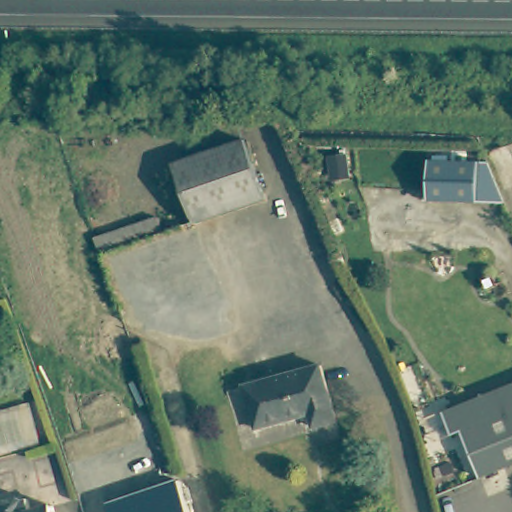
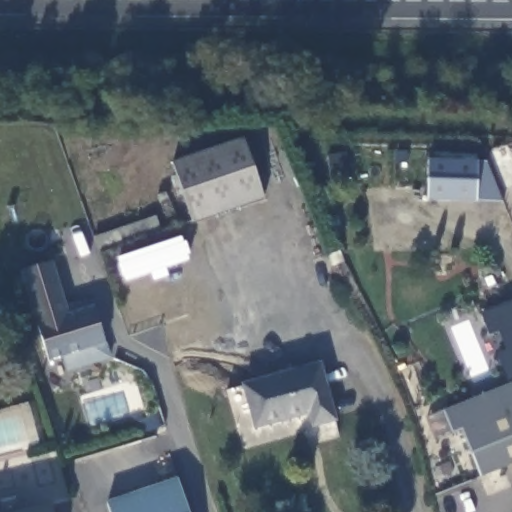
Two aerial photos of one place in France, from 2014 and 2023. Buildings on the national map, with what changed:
unchanged [(192,221),(191,218),(172,161),(244,136),(264,196),(195,220),(192,221)]
unchanged [(425,198),(425,158),(484,159),(500,198),(425,198)]
new [(62,355),(47,359),(20,270),(51,260),(65,308),(74,305),(91,300),(109,356),(85,363),(66,369),(62,355)]
new [(505,351),(499,332),(490,336),(480,314),(512,302),(512,381),(508,383),(497,355),(505,351)]
unchanged [(308,416),(254,430),(244,388),(319,367),(320,370),(335,424),(311,430),(308,416)]
unchanged [(475,478),(456,431),(447,434),(438,411),(512,381),(512,462),(475,478)]
unchanged [(106,503),(176,480),(188,512),(110,512),(106,503)]
unchanged [(50,503),(53,512),(17,512),(50,503)]

